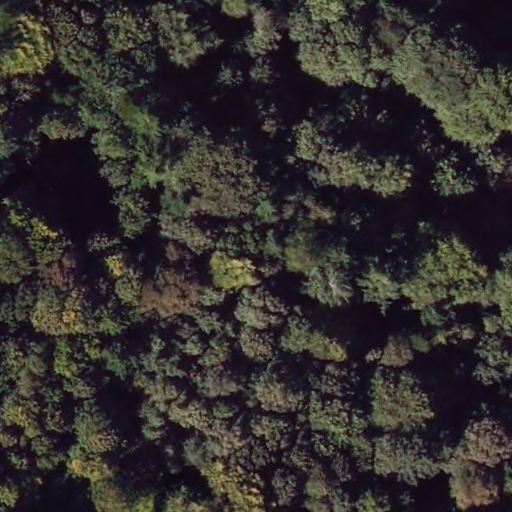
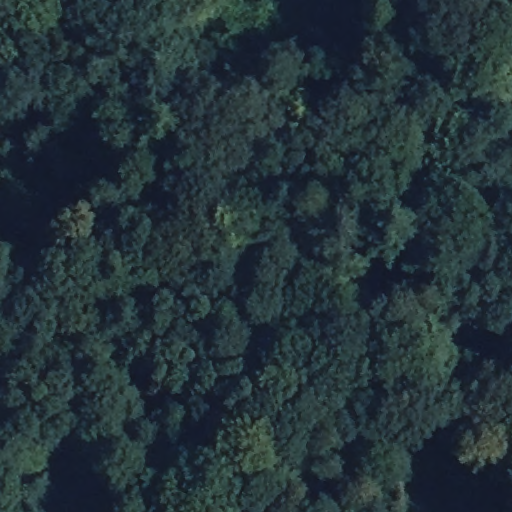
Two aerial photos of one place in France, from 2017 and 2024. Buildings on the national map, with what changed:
unchanged [(452,201),(475,164),(495,176),(470,214),(452,201)]

